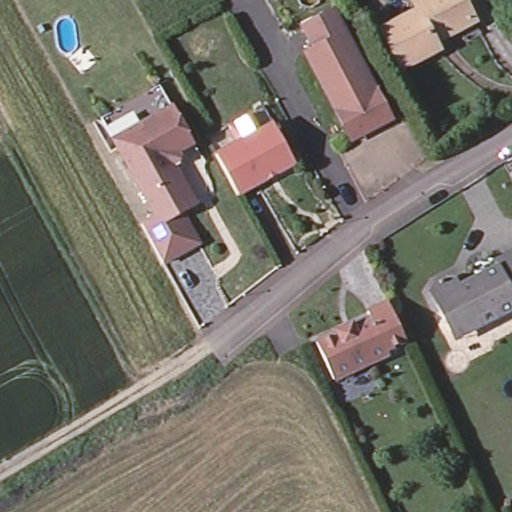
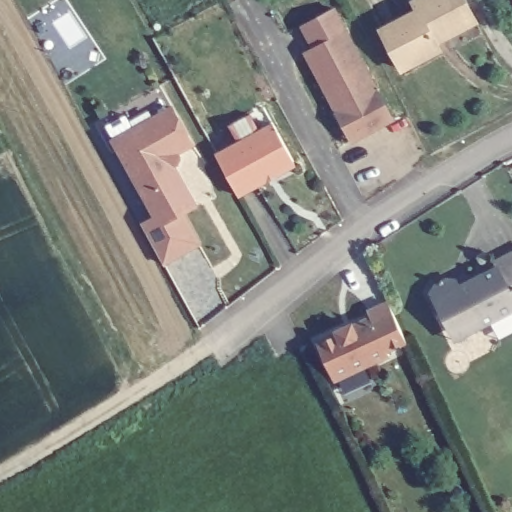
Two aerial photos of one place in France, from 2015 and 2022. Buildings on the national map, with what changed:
unchanged [(410,8),(425,0),(456,0),(470,26),(431,48),(435,54),(425,60),(404,21),(415,15),(410,8)]
unchanged [(376,126),(360,134),(314,44),(302,23),(316,16),(335,6),(392,117),(376,126)]
unchanged [(398,74),(377,36),(404,21),(425,60),(398,74)]
unchanged [(360,134),(352,138),(305,49),(314,44),(360,134)]
unchanged [(182,150),(184,155),(182,161),(177,164),(200,203),(186,211),(165,223),(160,214),(122,145),(117,137),(176,104),(180,112),(197,142),(182,150)]
unchanged [(244,197),(222,156),(242,145),(233,127),(268,109),(277,126),(300,166),(280,177),(269,183),(244,197)]
unchanged [(160,214),(165,223),(186,211),(203,242),(169,261),(147,222),(160,214)]
unchanged [(495,264),(492,258),(512,247),(512,307),(495,317),(476,278),(475,274),(495,264)]
unchanged [(447,330),(428,293),(432,282),(447,275),(454,277),(459,287),(476,278),(495,317),(477,326),(452,339),(447,330)]
unchanged [(320,346),(340,336),(339,332),(353,325),(355,329),(374,320),(370,314),(390,304),(410,343),(390,353),(391,357),(337,382),(320,346)]

